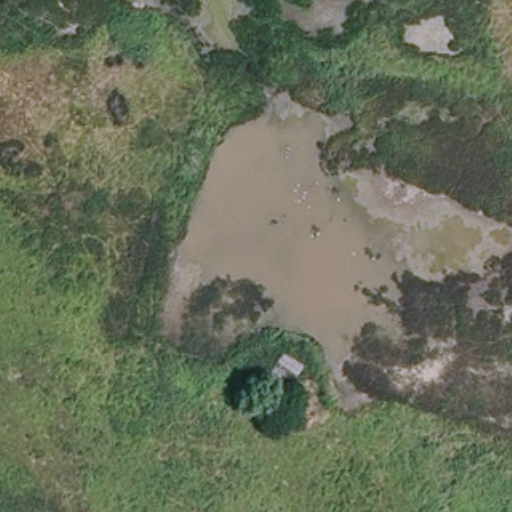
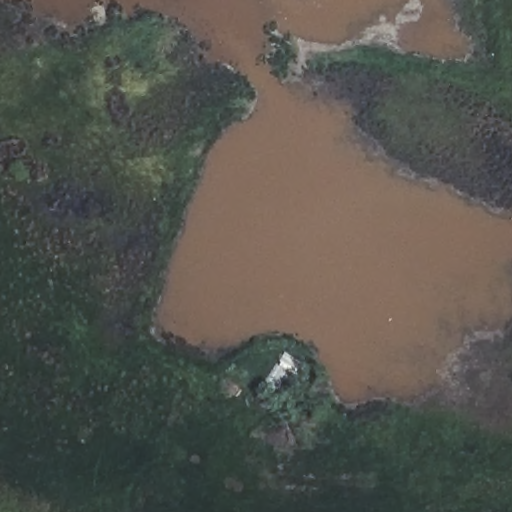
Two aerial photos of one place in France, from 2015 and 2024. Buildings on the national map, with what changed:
unchanged [(287,384),(271,372),(283,355),(298,367),(287,384)]

